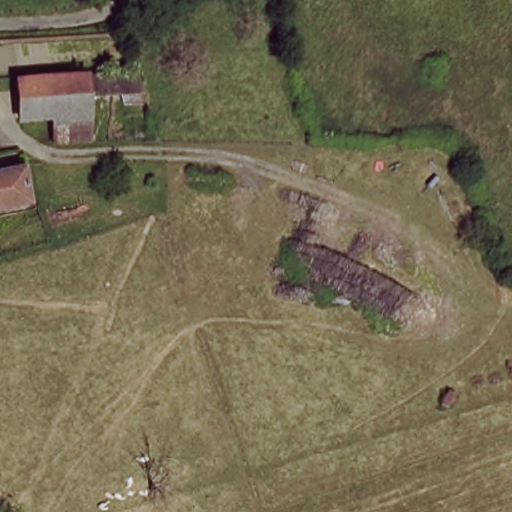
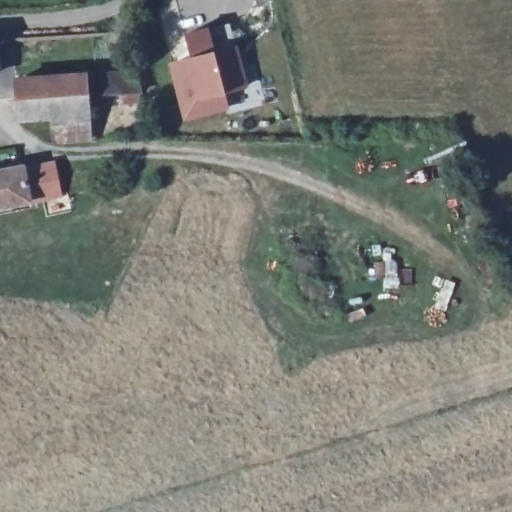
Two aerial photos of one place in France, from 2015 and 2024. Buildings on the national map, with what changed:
new [(190,58),(185,34),(210,28),(233,25),(242,46),(253,87),(226,94),(230,111),(186,122),(170,63),(190,58)]
unchanged [(141,74),(143,102),(92,104),(90,77),(141,74)]
unchanged [(92,104),(95,144),(60,146),(59,123),(26,124),(24,80),(90,77),(92,104)]
unchanged [(41,206),(0,215),(0,176),(32,168),(41,206)]

